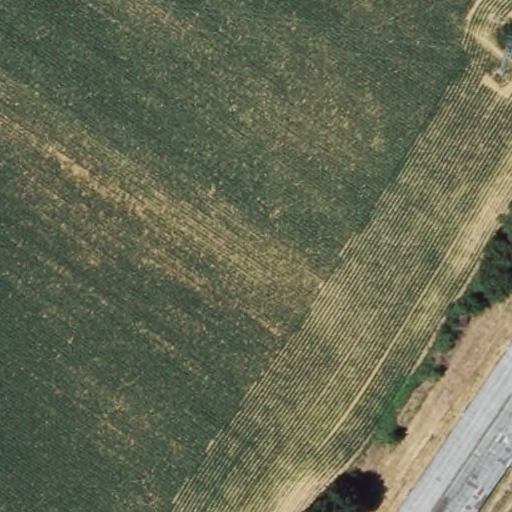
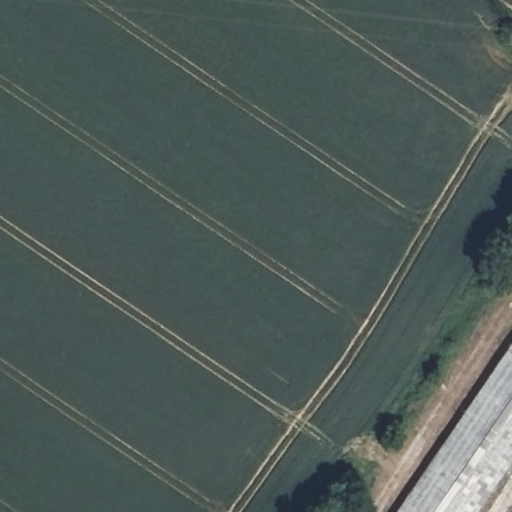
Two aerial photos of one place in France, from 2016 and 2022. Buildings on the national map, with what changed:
unchanged [(512,339),(512,443),(465,512),(394,512),(512,339)]

